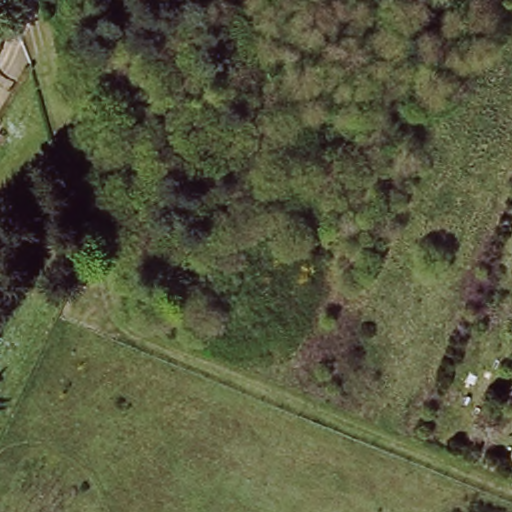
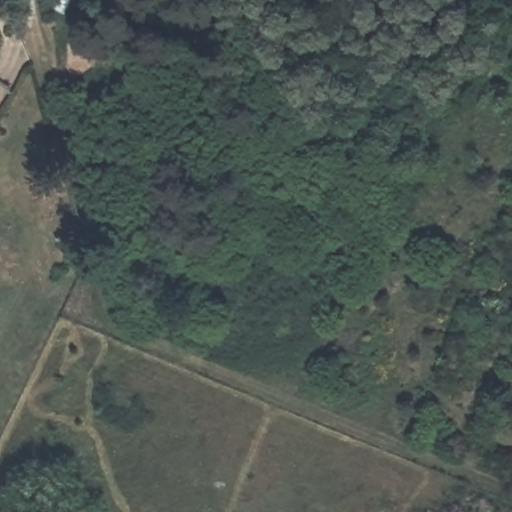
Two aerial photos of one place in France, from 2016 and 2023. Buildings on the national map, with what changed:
[]

